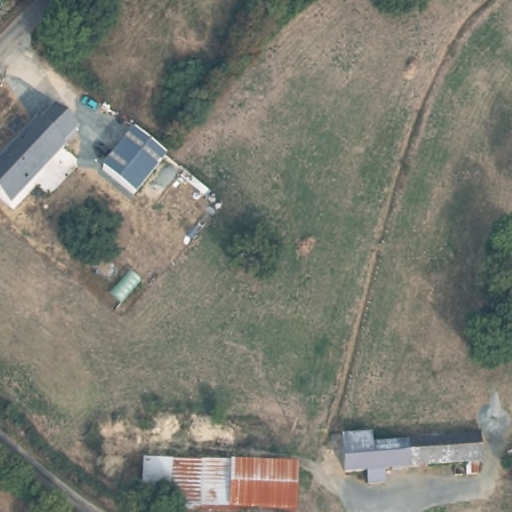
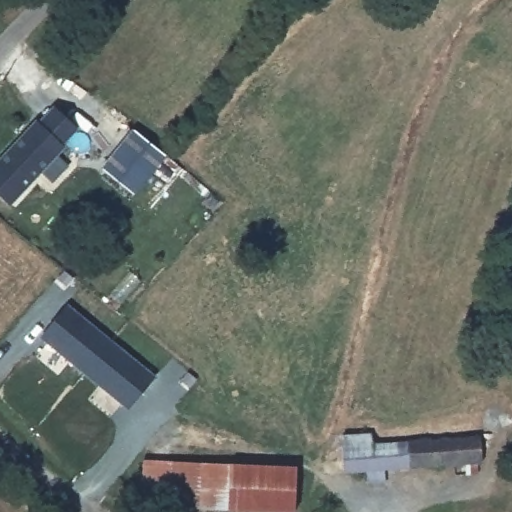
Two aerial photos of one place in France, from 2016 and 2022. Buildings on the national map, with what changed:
unchanged [(9,207),(0,198),(0,156),(45,105),(77,131),(9,207)]
unchanged [(134,195),(100,167),(130,130),(166,157),(134,195)]
new [(128,410),(39,337),(68,303),(156,377),(128,410)]
unchanged [(419,465),(383,468),(384,480),(363,481),(363,467),(340,468),(338,432),(367,431),(368,442),(416,437),(419,465)]
unchanged [(428,437),(457,435),(476,433),(478,463),(473,464),(473,470),(464,470),(463,462),(419,465),(416,437),(428,437)]
unchanged [(294,462),(293,509),(140,505),(142,457),(294,462)]

